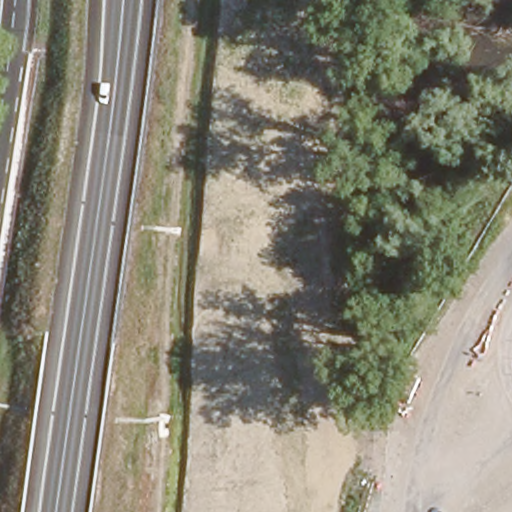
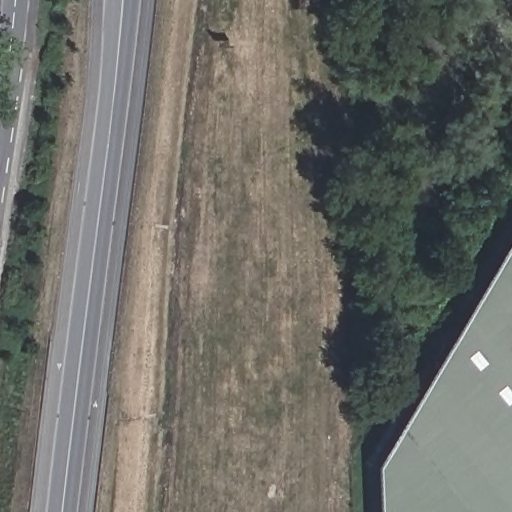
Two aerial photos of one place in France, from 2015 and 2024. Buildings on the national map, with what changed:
new [(377,462),(512,235),(512,512),(379,512),(377,462)]

